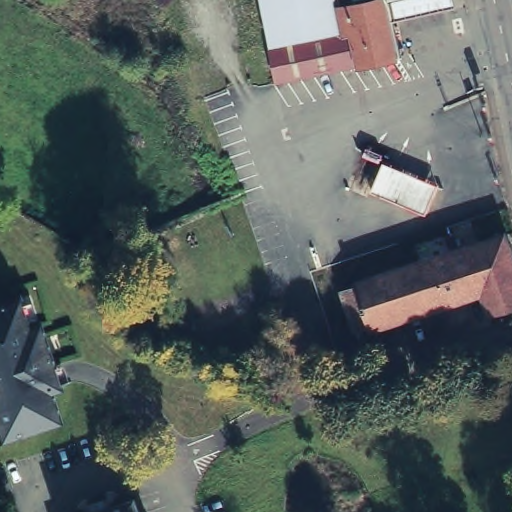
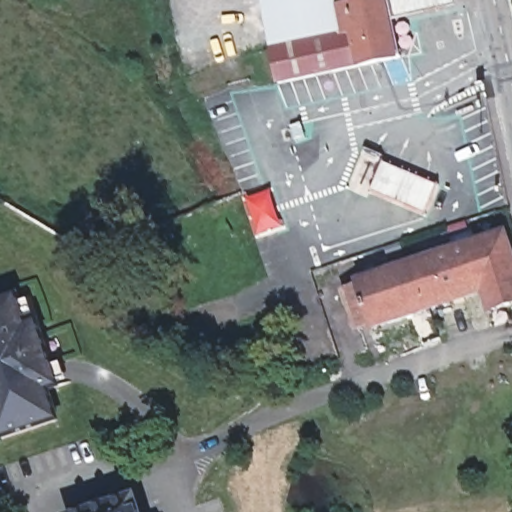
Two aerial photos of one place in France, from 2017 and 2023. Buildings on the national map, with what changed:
unchanged [(347,2),(360,66),(277,83),(261,0),(354,0),(347,2)]
unchanged [(401,57),(360,66),(347,2),(354,0),(388,0),(401,57)]
unchanged [(441,182),(427,218),(370,192),(384,157),(441,182)]
unchanged [(491,312),(484,290),(376,327),(375,323),(357,330),(344,292),(361,286),(361,282),(503,235),(512,262),(512,305),(491,312)]
unchanged [(29,327),(39,323),(60,386),(51,389),(61,418),(1,437),(0,433),(0,303),(20,297),(29,327)]
unchanged [(148,512),(71,512),(140,488),(148,512)]

